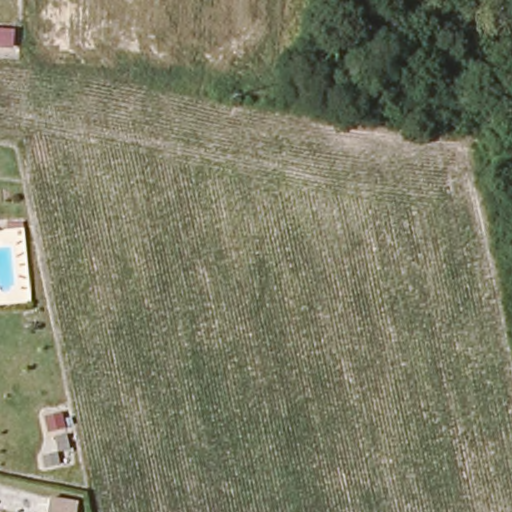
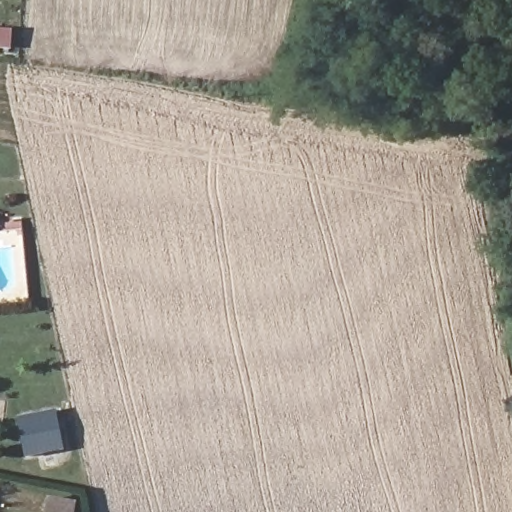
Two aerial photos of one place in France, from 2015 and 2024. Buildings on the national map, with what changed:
new [(26,458),(18,418),(56,410),(65,450),(26,458)]
unchanged [(70,500),(68,512),(42,512),(44,496),(70,500)]

